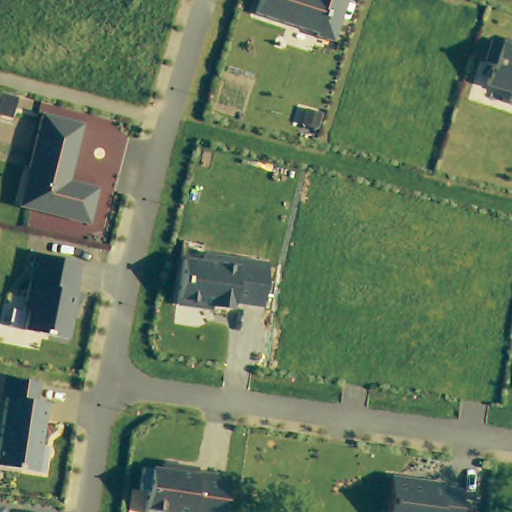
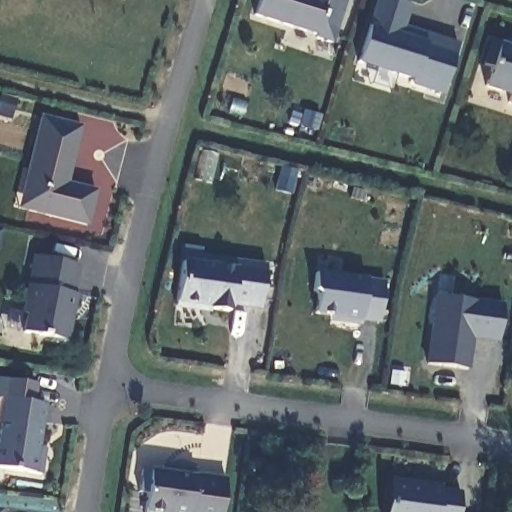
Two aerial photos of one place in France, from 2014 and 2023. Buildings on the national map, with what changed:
unchanged [(332,39),(316,34),(317,31),(255,11),(259,0),(345,0),(332,39)]
new [(457,43),(440,96),(408,86),(410,82),(355,64),(375,0),(396,0),(411,5),(403,26),(457,43)]
unchanged [(508,88),(482,80),(488,61),(481,58),(488,36),(512,44),(512,99),(505,97),(508,88)]
new [(303,111),(323,118),(317,133),(298,127),(303,111)]
unchanged [(30,167),(44,114),(82,123),(71,173),(66,171),(64,179),(98,187),(90,222),(31,208),(21,205),(30,167)]
new [(283,162),(300,166),(294,191),(277,186),(283,162)]
unchanged [(75,291),(78,291),(67,338),(25,328),(29,310),(25,309),(37,252),(81,261),(75,291)]
unchanged [(177,303),(182,257),(200,259),(201,255),(266,262),(260,308),(229,304),(228,311),(177,303)]
new [(379,324),(360,322),(359,328),(330,323),(331,318),(315,315),(317,296),(313,289),(315,271),(367,279),(384,280),(379,324)]
new [(498,343),(471,340),(467,370),(423,364),(434,294),(505,304),(498,343)]
unchanged [(39,443),(46,444),(41,470),(0,463),(0,434),(6,393),(46,400),(39,443)]
unchanged [(148,467),(162,468),(163,466),(196,470),(196,474),(225,478),(220,512),(168,512),(142,508),(148,467)]
unchanged [(462,489),(458,512),(387,512),(391,478),(462,489)]
unchanged [(2,505),(2,512),(0,512),(0,505),(2,505)]

